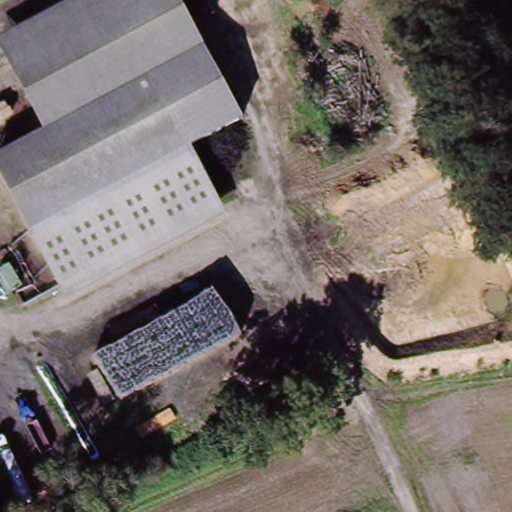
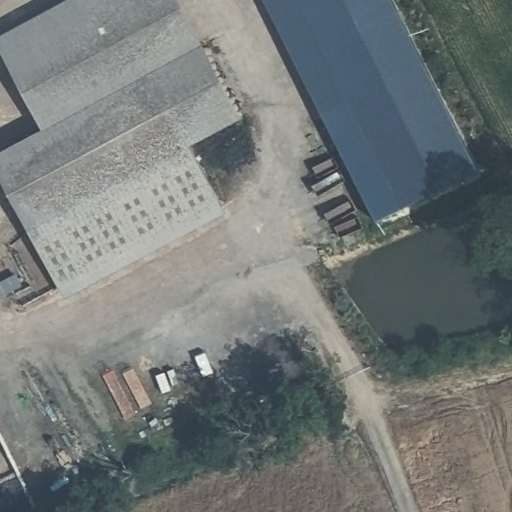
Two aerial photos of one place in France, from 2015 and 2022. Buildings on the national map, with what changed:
unchanged [(0,40),(73,0),(184,0),(250,115),(191,150),(151,76),(45,129),(0,44),(0,40)]
new [(352,112),(430,72),(481,168),(377,221),(264,0),(295,0),(352,112)]
new [(430,72),(352,112),(295,0),(393,0),(430,72)]
unchanged [(0,157),(0,152),(45,129),(151,76),(191,150),(223,211),(67,292),(0,157)]

